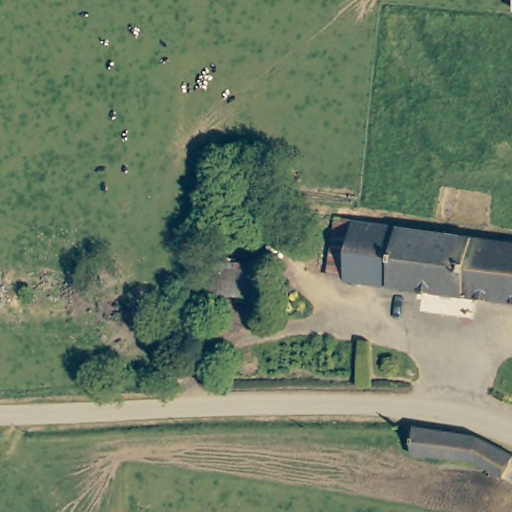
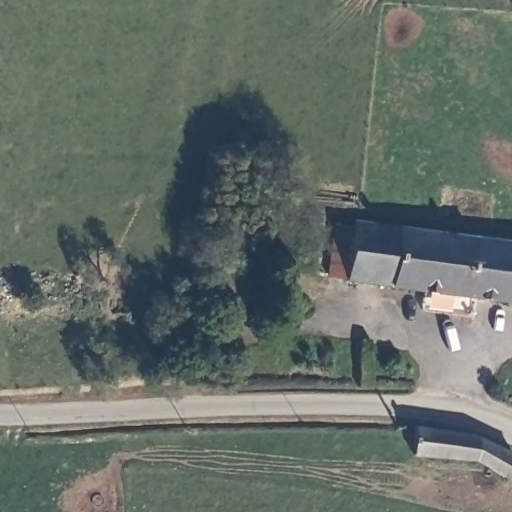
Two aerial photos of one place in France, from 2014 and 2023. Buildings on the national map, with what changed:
unchanged [(257,216),(284,217),(281,233),(274,232),(255,231),(257,216)]
unchanged [(357,283),(342,281),(348,222),(512,245),(512,304),(358,285),(357,283)]
unchanged [(264,265),(265,294),(209,296),(207,268),(264,265)]
unchanged [(502,477),(463,461),(411,454),(411,453),(413,425),(474,436),(512,453),(512,475),(505,473),(502,477)]

